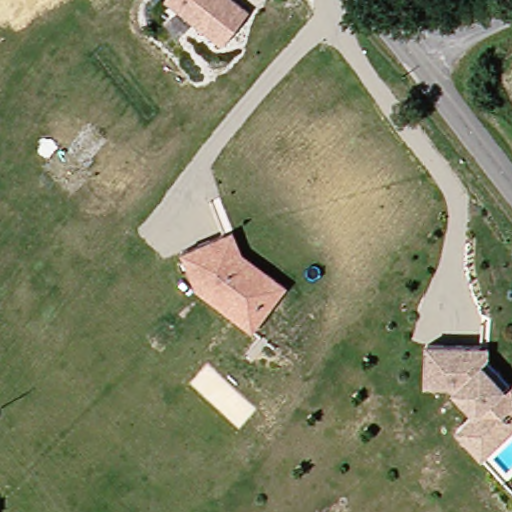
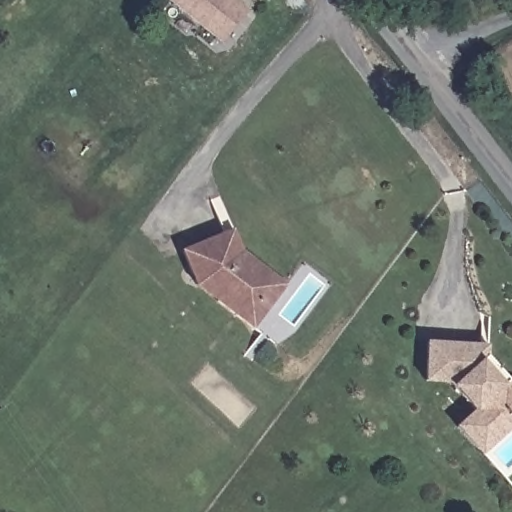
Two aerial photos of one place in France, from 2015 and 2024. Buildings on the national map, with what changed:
unchanged [(218,45),(174,0),(235,0),(249,14),(218,45)]
unchanged [(237,317),(218,303),(223,297),(206,285),(198,288),(179,254),(220,232),(227,229),(237,249),(268,272),(287,286),(270,308),(254,330),(237,317)]
unchanged [(452,379),(427,378),(429,340),(480,342),(480,354),(509,386),(512,386),(512,409),(509,409),(480,435),(465,418),(477,407),(452,379)]
unchanged [(480,354),(480,342),(489,343),(489,353),(512,378),(512,386),(509,386),(480,354)]
unchanged [(509,409),(512,409),(512,425),(483,451),(459,424),(465,418),(480,435),(509,409)]

